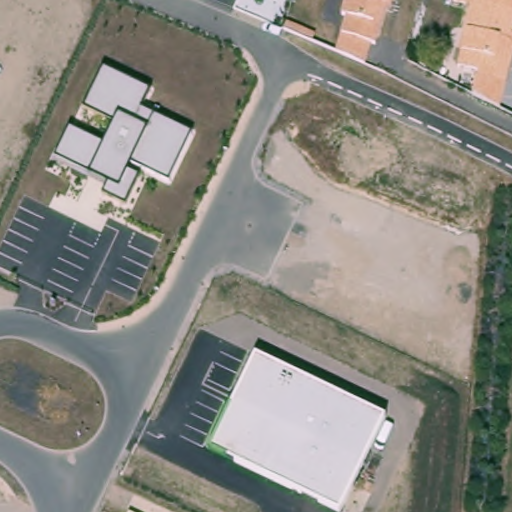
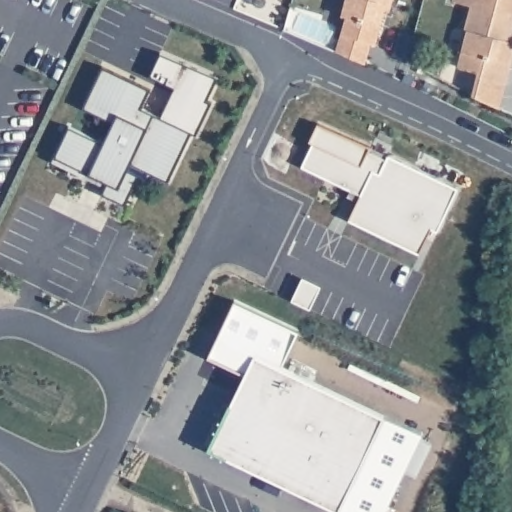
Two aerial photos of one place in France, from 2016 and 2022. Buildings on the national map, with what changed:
unchanged [(336,20),(340,0),(398,0),(395,11),(383,10),(367,66),(335,51),(342,22),(336,20)]
unchanged [(475,75),(476,70),(456,65),(466,30),(463,30),(471,5),(453,0),(512,0),(512,25),(510,32),(512,33),(512,51),(503,82),(475,75)]
new [(175,86),(152,75),(161,52),(217,76),(207,100),(211,101),(196,134),(192,132),(162,119),(175,86)]
unchanged [(131,162),(127,170),(139,176),(125,205),(103,195),(108,184),(92,173),(55,155),(69,127),(104,145),(115,122),(84,106),(104,69),(149,90),(141,109),(192,132),(169,182),(131,162)]
new [(428,237),(420,254),(349,220),(357,201),(348,197),(351,190),(302,167),(313,144),(309,142),(318,124),(371,148),(388,156),(458,188),(438,231),(433,240),(428,237)]
new [(303,278),(321,287),(310,310),(292,301),(303,278)]
unchanged [(256,353),(386,417),(339,510),(210,448),(256,353)]
new [(386,417),(423,433),(386,512),(342,512),(339,510),(386,417)]

